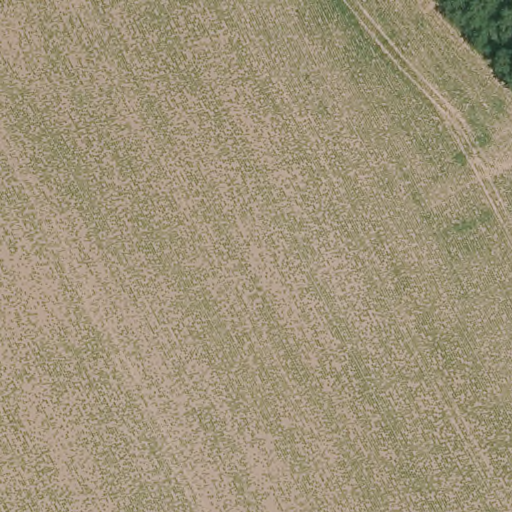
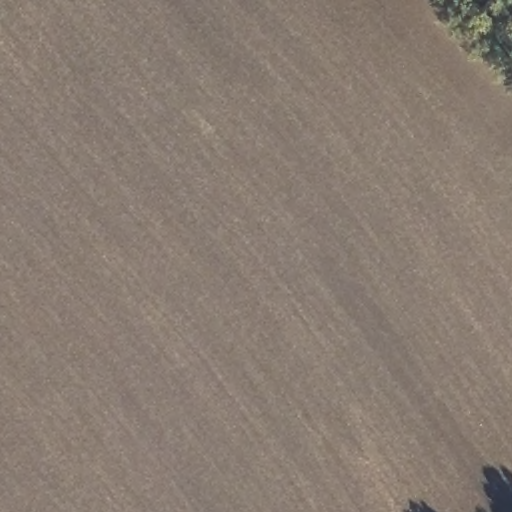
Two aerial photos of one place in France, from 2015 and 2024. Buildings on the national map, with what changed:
[]

